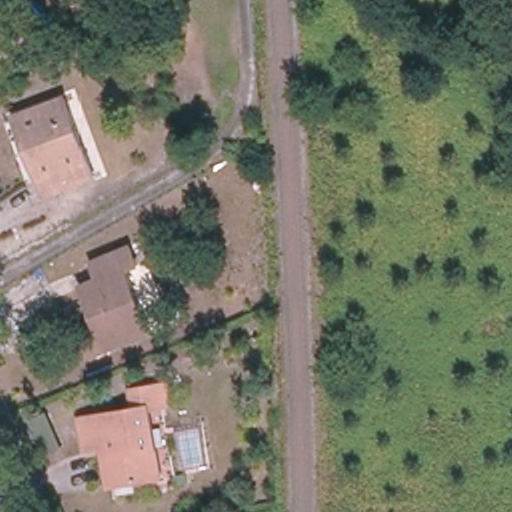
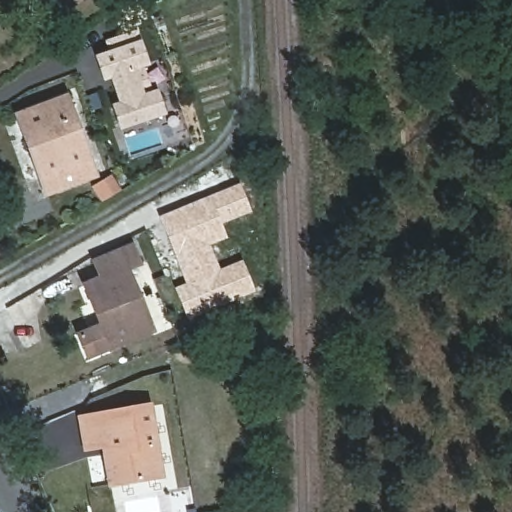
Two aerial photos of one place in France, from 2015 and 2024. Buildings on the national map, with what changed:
unchanged [(51,0),(76,0),(58,11),(51,0)]
new [(106,46),(115,43),(133,37),(144,68),(138,70),(148,98),(154,97),(160,117),(120,131),(113,111),(120,108),(110,79),(103,82),(96,61),(110,56),(106,46)]
unchanged [(46,194),(33,157),(24,133),(17,115),(66,97),(96,175),(46,194)]
new [(185,283),(159,216),(239,184),(251,213),(221,223),(227,239),(210,246),(221,269),(242,260),(255,292),(189,319),(174,288),(185,283)]
unchanged [(86,335),(113,324),(102,297),(94,280),(111,273),(105,257),(142,241),(149,258),(137,263),(163,325),(121,343),(94,354),(86,335)]
unchanged [(151,480),(109,488),(104,458),(102,449),(84,452),(78,415),(135,405),(132,389),(169,383),(172,404),(153,407),(160,449),(165,478),(151,480)]

